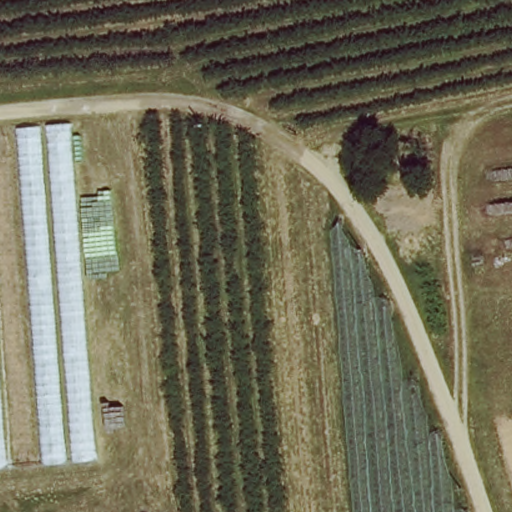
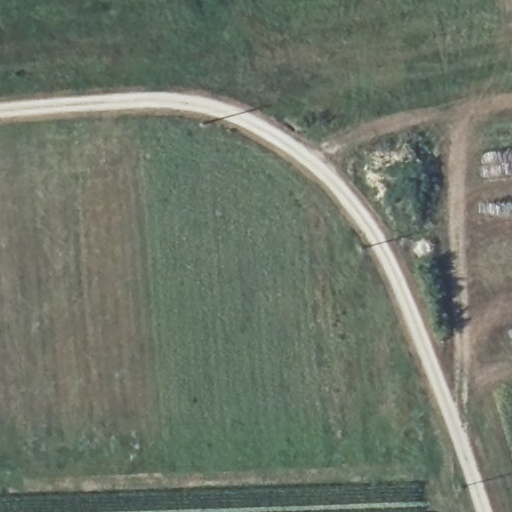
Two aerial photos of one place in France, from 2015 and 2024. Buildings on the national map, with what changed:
demolished [(98,460),(0,468),(0,129),(72,122),(98,460)]

